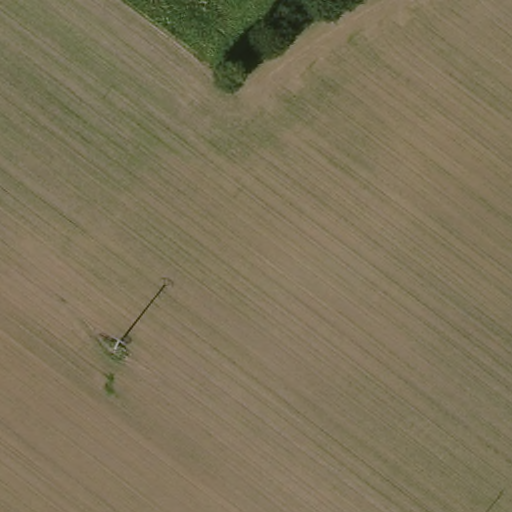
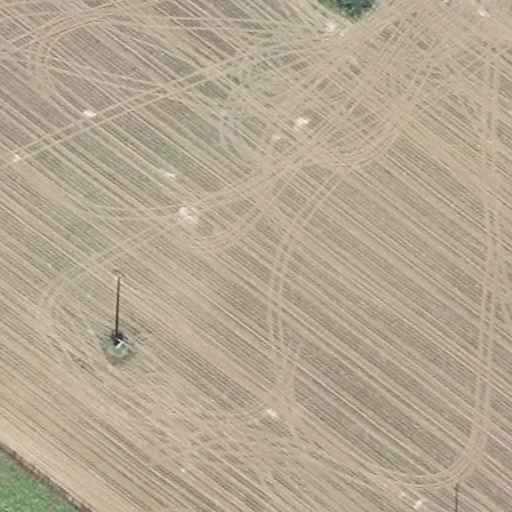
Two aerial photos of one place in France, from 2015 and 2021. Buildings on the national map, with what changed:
[]

